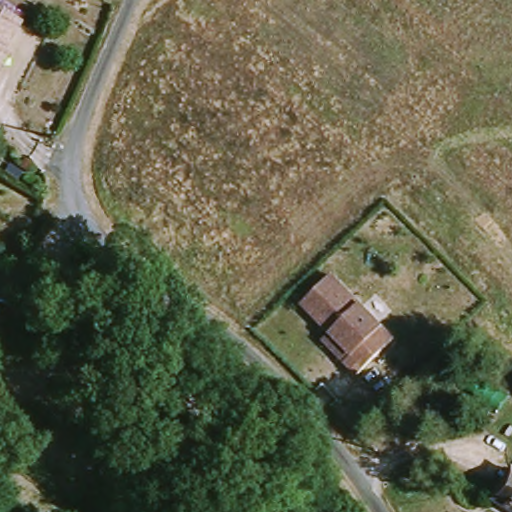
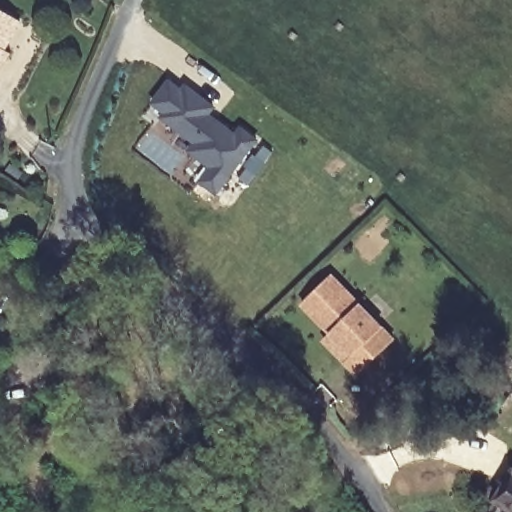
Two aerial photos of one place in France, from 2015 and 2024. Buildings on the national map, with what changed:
unchanged [(22,24),(3,52),(0,50),(0,11),(22,24)]
unchanged [(1,68),(0,70),(0,67),(1,68)]
new [(172,82),(185,92),(189,87),(216,108),(211,115),(238,137),(244,130),(259,142),(218,195),(203,182),(213,169),(192,152),(198,144),(165,119),(168,114),(155,104),(172,82)]
unchanged [(395,342),(360,377),(346,364),(354,357),(304,306),(333,278),(395,342)]
unchanged [(512,475),(512,511),(496,501),(512,475)]

